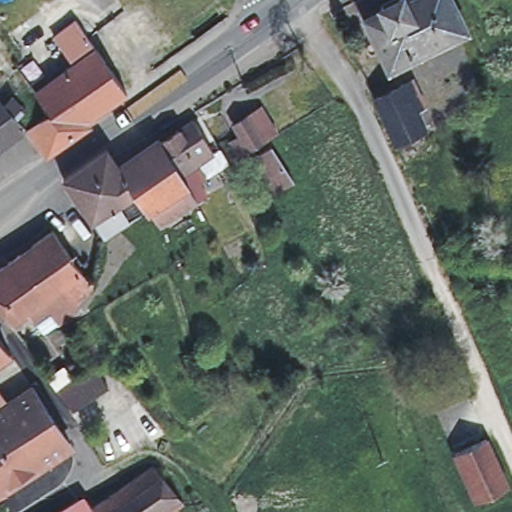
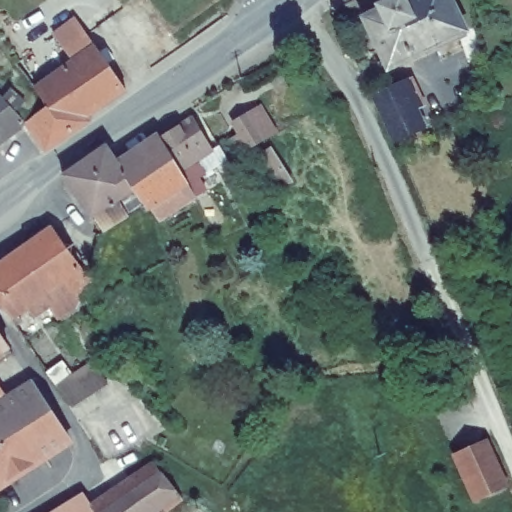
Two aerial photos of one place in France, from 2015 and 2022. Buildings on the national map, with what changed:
unchanged [(374,6),(387,0),(399,0),(400,1),(402,0),(446,0),(462,29),(385,66),(361,21),(377,12),(374,6)]
unchanged [(83,120),(86,126),(47,156),(28,130),(41,118),(50,110),(37,90),(73,63),(54,35),(78,18),(98,46),(127,89),(83,120)]
unchanged [(425,124),(396,138),(383,108),(376,91),(404,78),(415,102),(425,124)]
unchanged [(0,154),(0,102),(28,130),(0,154)]
unchanged [(233,123),(249,114),(266,142),(240,156),(231,140),(241,134),(233,123)]
unchanged [(196,117),(218,151),(228,166),(210,177),(202,181),(208,197),(196,205),(186,182),(153,201),(101,233),(90,217),(134,189),(128,181),(143,172),(135,157),(162,139),(196,117)]
unchanged [(60,175),(103,144),(118,167),(135,157),(143,172),(128,181),(134,189),(90,217),(60,175)]
unchanged [(273,147),(293,182),(276,192),(255,156),(273,147)]
unchanged [(11,317),(0,301),(0,260),(52,224),(84,268),(90,278),(73,290),(80,302),(57,318),(48,304),(31,315),(26,307),(18,312),(21,318),(14,322),(11,317)]
unchanged [(0,363),(0,333),(14,353),(0,363)]
unchanged [(94,358),(110,384),(69,408),(54,382),(94,358)]
unchanged [(34,380),(73,436),(25,467),(0,432),(0,402),(9,396),(34,380)]
unchanged [(0,402),(0,382),(9,396),(0,402)]
unchanged [(0,484),(0,432),(25,467),(0,484)]
unchanged [(483,443),(504,488),(473,503),(451,458),(483,443)]
unchanged [(153,462),(183,505),(169,511),(170,512),(97,512),(90,501),(153,462)]
unchanged [(69,496),(73,494),(85,493),(90,501),(97,512),(44,512),(57,504),(70,504),(69,496)]

